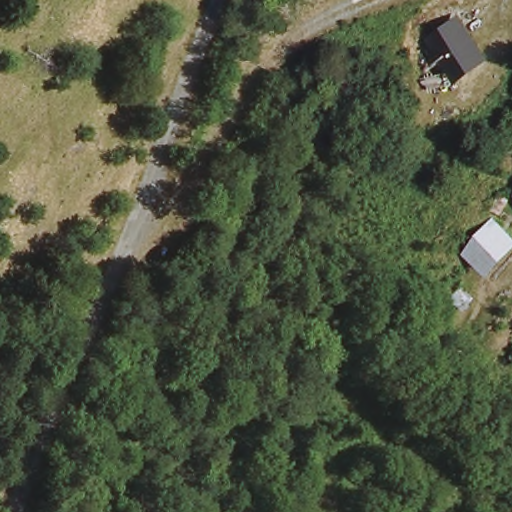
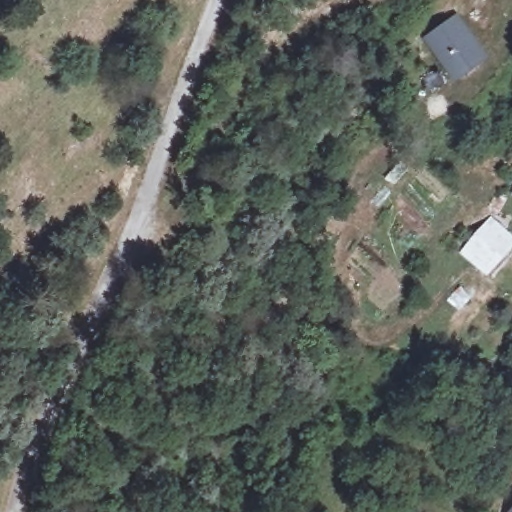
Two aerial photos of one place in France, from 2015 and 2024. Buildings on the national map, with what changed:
unchanged [(458,16),(488,60),(454,83),(425,37),(458,16)]
unchanged [(507,240),(480,271),(463,255),(486,223),(507,240)]
unchanged [(512,510),(512,512),(510,512),(512,510)]

